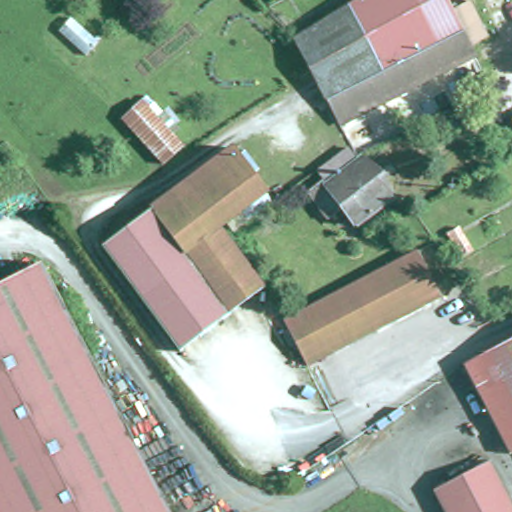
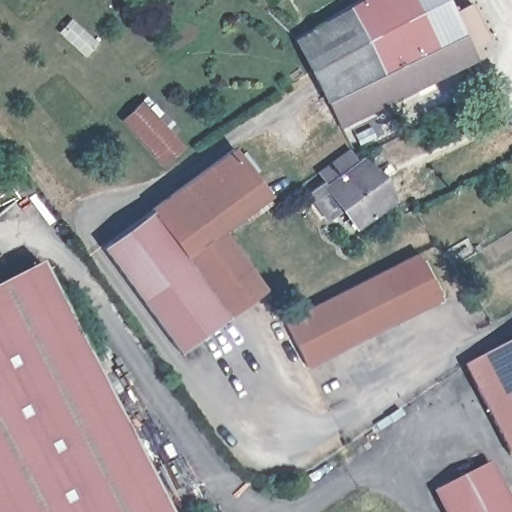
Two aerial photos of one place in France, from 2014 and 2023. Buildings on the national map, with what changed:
unchanged [(328,101),(313,73),(295,37),(354,1),(356,0),(413,0),(437,47),(328,101)]
unchanged [(451,12),(470,2),(482,25),(437,47),(413,0),(445,0),(451,12)]
unchanged [(488,39),(470,49),(473,55),(441,71),(443,74),(341,125),(328,101),(437,47),(482,25),(488,39)]
unchanged [(163,164),(149,149),(123,119),(143,101),(150,107),(155,104),(163,112),(158,117),(171,132),(183,145),(163,164)]
unchanged [(103,242),(233,143),(267,188),(273,197),(249,216),(227,232),(265,283),(181,347),(103,242)]
unchanged [(309,193),(323,181),(317,172),(349,149),(359,160),(362,159),(374,175),(380,171),(386,180),(381,184),(392,200),(357,225),(344,207),(329,220),(309,193)]
unchanged [(418,253),(441,297),(308,366),(285,321),(418,253)]
unchanged [(38,263),(112,407),(143,468),(168,457),(181,482),(157,494),(166,512),(0,512),(0,283),(38,263)]
unchanged [(512,340),(512,454),(465,365),(512,340)]
unchanged [(487,464),(511,512),(444,512),(433,492),(487,464)]

